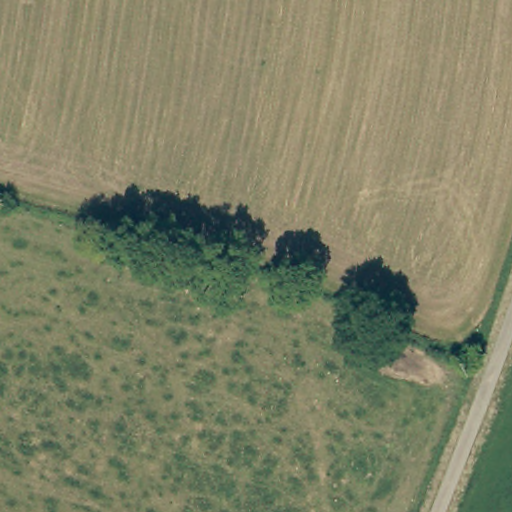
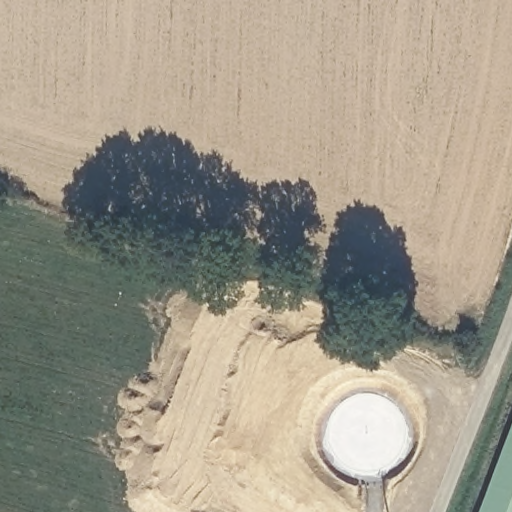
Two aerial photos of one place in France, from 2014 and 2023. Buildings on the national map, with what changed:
new [(512,512),(481,512),(512,429),(512,512)]

